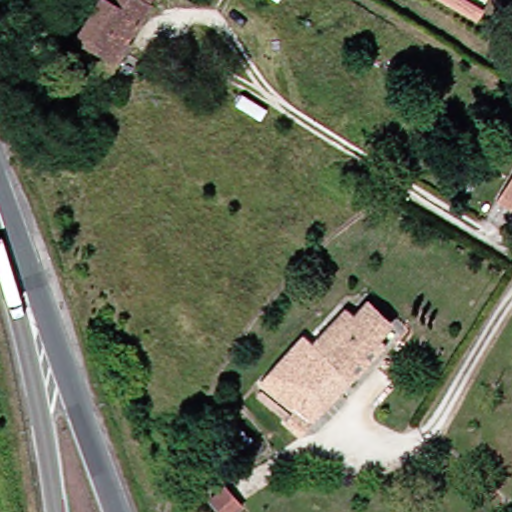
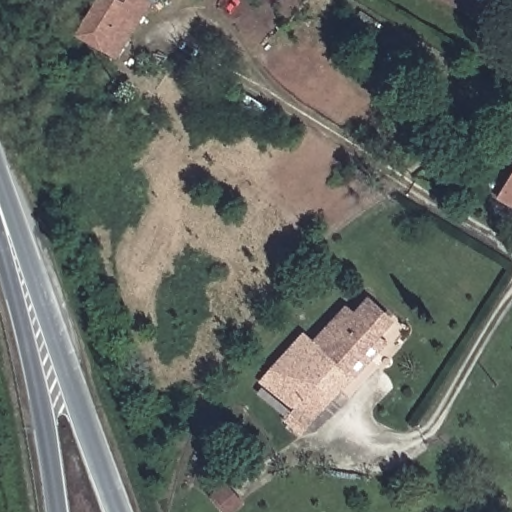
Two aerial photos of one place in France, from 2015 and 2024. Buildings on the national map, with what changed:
unchanged [(156,1),(121,57),(83,34),(103,0),(157,0),(156,1)]
unchanged [(478,21),(442,0),(469,0),(485,9),(478,21)]
unchanged [(510,210),(489,197),(512,158),(512,207),(510,210)]
unchanged [(368,334),(336,370),(342,376),(291,433),(275,420),(284,410),(250,382),(295,333),(303,341),(337,305),(346,312),(358,298),(382,319),(368,334)]

